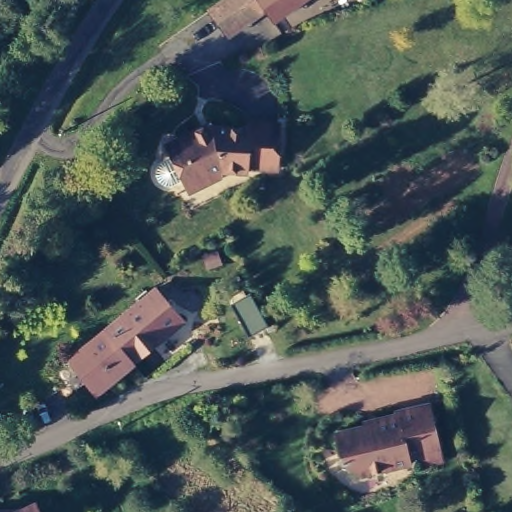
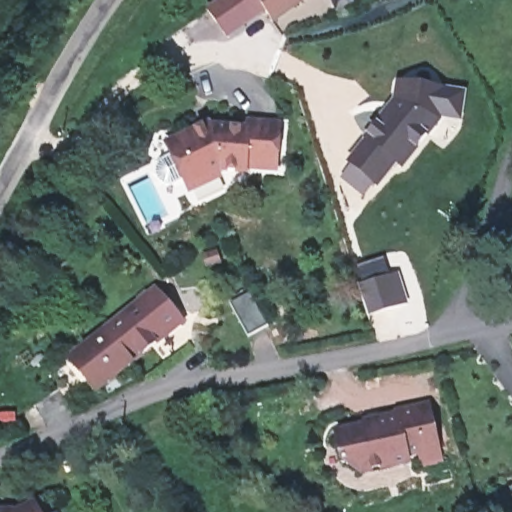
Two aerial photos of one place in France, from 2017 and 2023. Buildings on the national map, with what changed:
unchanged [(205,3),(209,0),(286,0),(266,15),(260,8),(225,31),(216,20),(205,3)]
new [(395,165),(377,188),(347,164),(394,102),(397,82),(465,92),(460,121),(440,119),(402,170),(395,165)]
unchanged [(194,185),(189,179),(165,141),(210,120),(215,126),(250,125),(250,119),(280,118),(276,152),(274,166),(250,165),(217,165),(222,174),(194,185)]
new [(407,305),(371,318),(362,286),(356,266),(384,257),(390,276),(399,274),(407,305)]
unchanged [(104,330),(121,316),(140,302),(157,289),(182,322),(167,335),(130,363),(104,330)]
new [(250,290),(268,323),(248,333),(230,300),(250,290)]
unchanged [(97,390),(70,356),(104,330),(130,363),(97,390)]
unchanged [(423,457),(422,450),(411,454),(411,460),(364,472),(339,455),(335,430),(400,413),(399,408),(429,400),(438,445),(440,452),(423,457)]
unchanged [(0,512),(0,509),(16,509),(35,500),(41,512),(0,512)]

